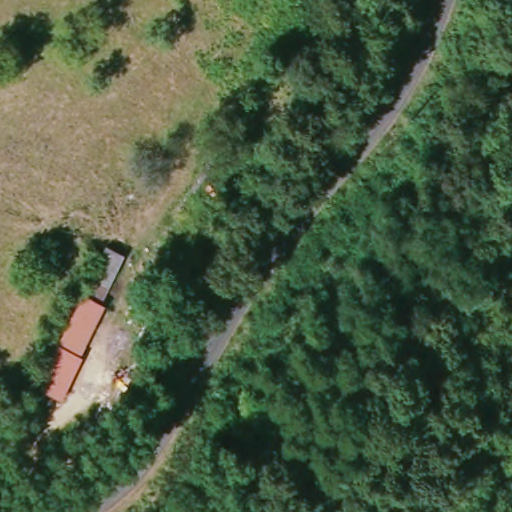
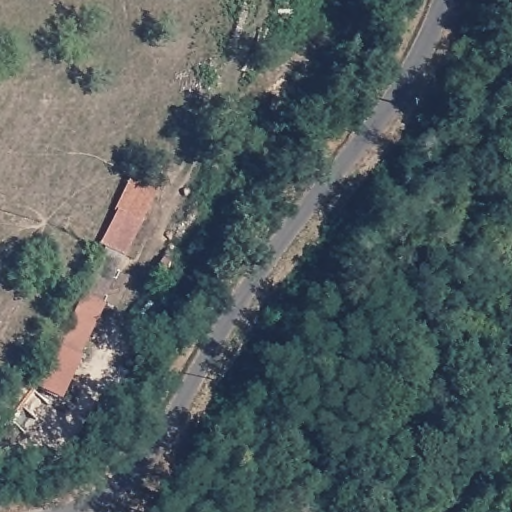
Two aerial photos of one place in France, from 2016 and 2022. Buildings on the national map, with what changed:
new [(124,253),(106,243),(102,242),(117,212),(115,211),(135,169),(161,183),(142,221),(144,222),(124,253)]
unchanged [(102,299),(105,300),(82,351),(61,396),(36,382),(56,339),(59,341),(83,290),(92,274),(106,243),(124,253),(110,283),(102,299)]

